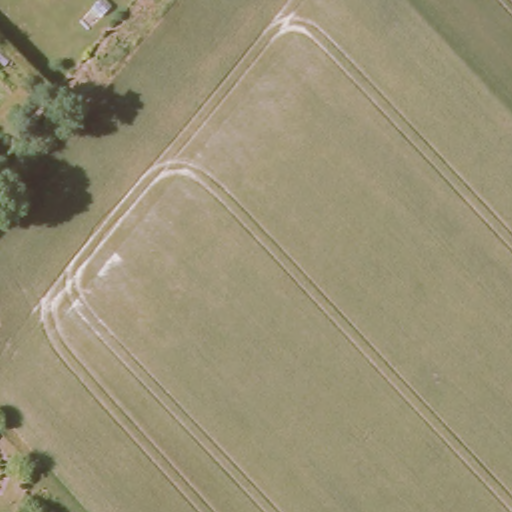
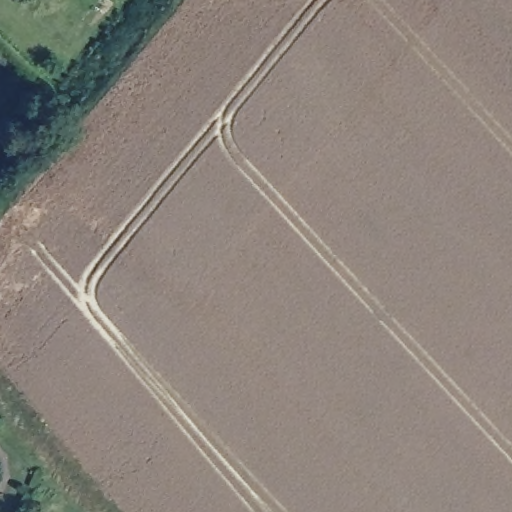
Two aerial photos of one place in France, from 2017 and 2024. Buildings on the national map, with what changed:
unchanged [(12,145),(0,158),(0,134),(12,145)]

